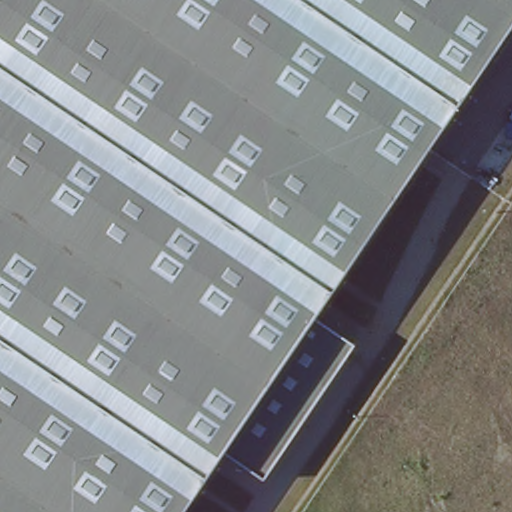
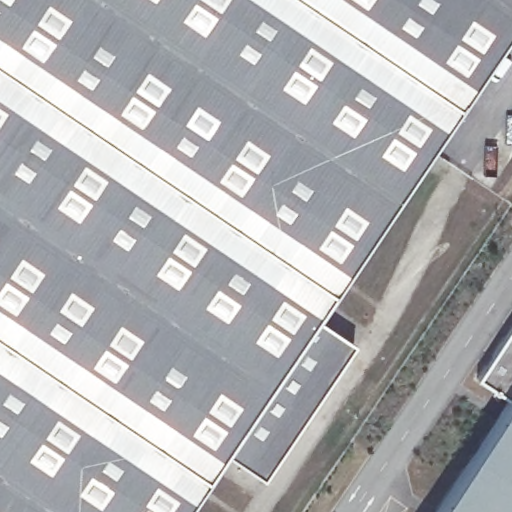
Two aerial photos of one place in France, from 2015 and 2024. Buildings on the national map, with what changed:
unchanged [(182,512),(0,512),(0,0),(512,0),(512,26),(317,312),(354,344),(264,476),(224,449),(182,512)]
new [(508,401),(476,379),(512,323),(512,512),(436,512),(508,401)]

